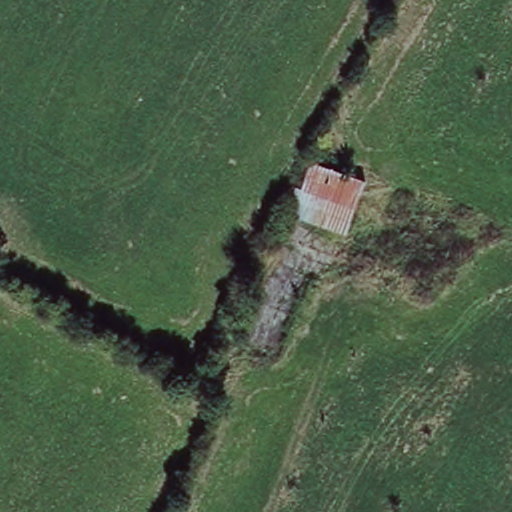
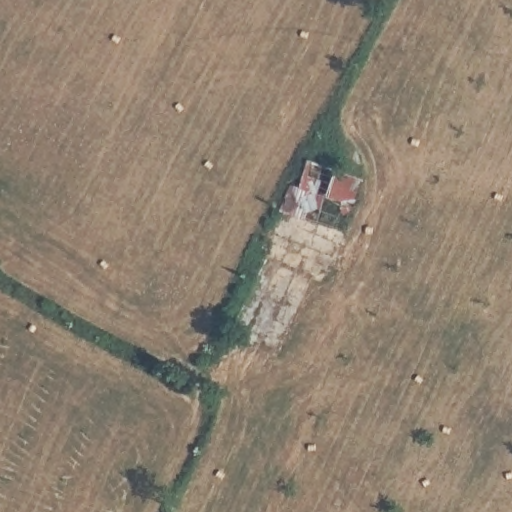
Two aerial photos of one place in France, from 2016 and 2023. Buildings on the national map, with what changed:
unchanged [(365,179),(346,235),(300,222),(290,249),(268,241),(287,186),(300,191),(308,161),(365,179)]

